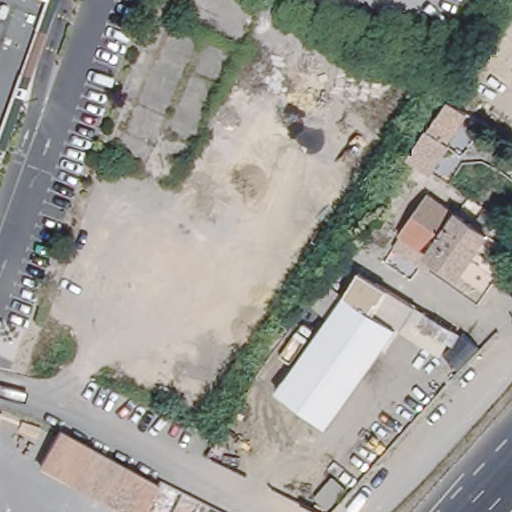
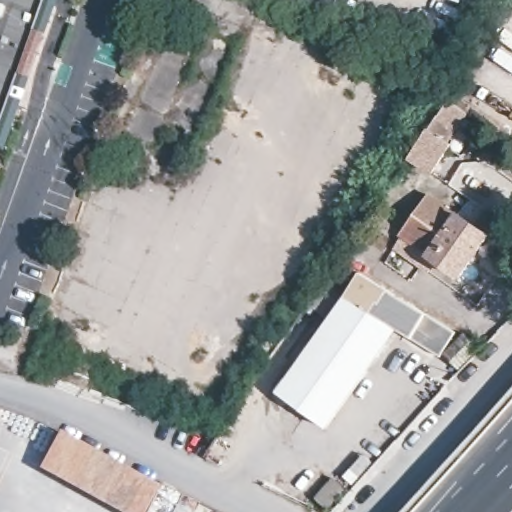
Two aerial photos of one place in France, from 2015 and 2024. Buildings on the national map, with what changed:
unchanged [(0,0),(48,0),(51,1),(0,140),(0,0)]
unchanged [(450,111),(468,124),(452,144),(431,170),(412,156),(432,132),(449,111),(450,111)]
unchanged [(419,258),(401,242),(409,232),(406,230),(438,188),(497,235),(465,276),(441,258),(432,269),(419,258)]
unchanged [(363,272),(417,307),(402,328),(328,429),(279,391),(363,272)]
unchanged [(439,357),(411,338),(419,327),(415,324),(421,315),(422,313),(456,333),(449,344),(442,354),(439,357)]
unchanged [(477,349),(458,369),(442,354),(462,333),(477,349)]
unchanged [(160,486),(147,512),(127,512),(45,472),(61,437),(160,486)]

